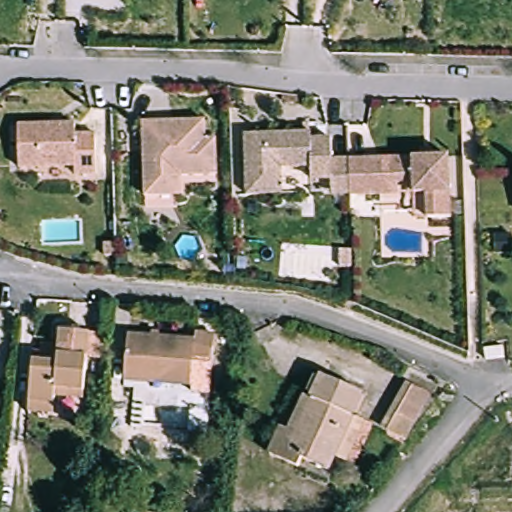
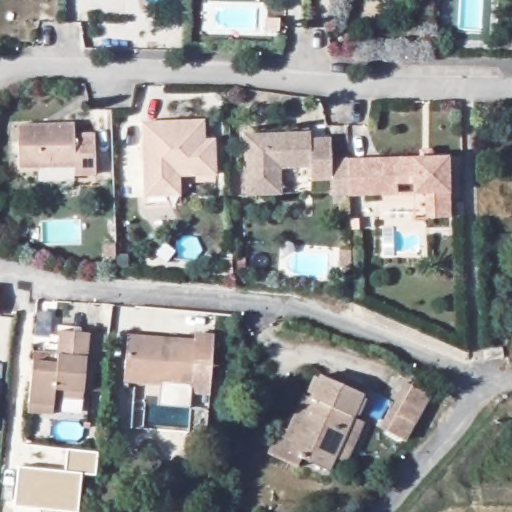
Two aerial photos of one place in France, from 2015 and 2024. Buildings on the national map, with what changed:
unchanged [(172,193),(147,193),(144,121),(193,119),(195,137),(204,137),(206,172),(181,174),(182,192),(172,193)]
unchanged [(75,133),(95,132),(96,162),(77,162),(76,155),(20,157),(20,126),(75,124),(75,133)]
unchanged [(309,163),(277,164),(278,189),(245,190),(243,138),(243,131),(252,131),(308,130),(309,163)]
unchanged [(351,192),(350,157),(449,154),(452,214),(428,215),(427,189),(415,189),(382,191),(351,192)]
unchanged [(50,412),(27,411),(31,353),(56,355),(58,325),(107,327),(103,357),(85,357),(82,398),(50,397),(50,412)]
unchanged [(213,365),(195,362),(192,380),(126,372),(130,332),(198,338),(200,331),(217,332),(213,365)]
unchanged [(350,458),(336,451),(327,468),(301,454),(295,467),(267,452),(280,426),(286,429),(305,392),(314,397),(325,373),(365,395),(348,427),(362,434),(350,458)]
unchanged [(404,437),(388,427),(417,383),(431,393),(404,437)]
new [(63,512),(13,507),(17,467),(65,471),(67,449),(97,451),(95,474),(82,473),(78,512),(63,512)]
unchanged [(208,512),(208,510),(218,512),(208,512)]

